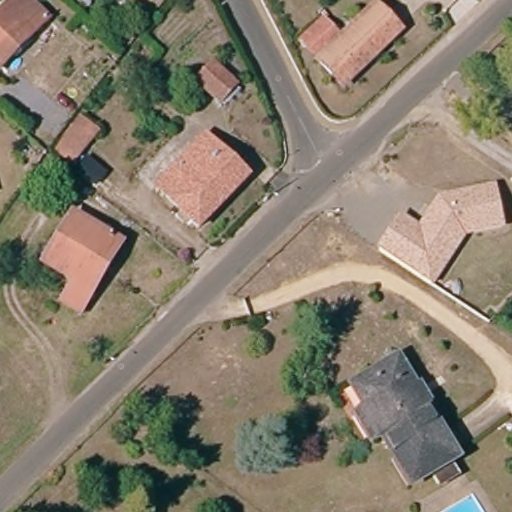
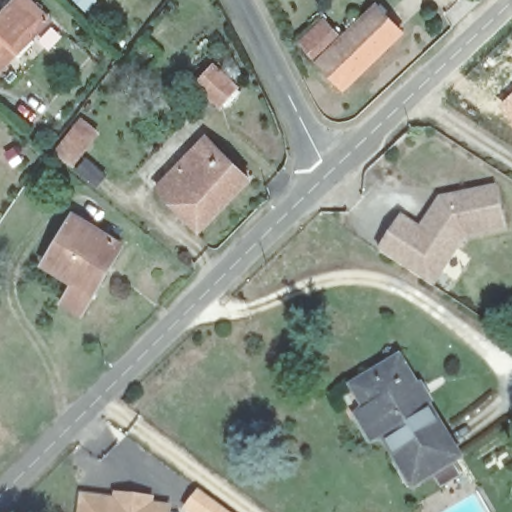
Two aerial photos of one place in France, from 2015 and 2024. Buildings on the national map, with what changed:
unchanged [(47,21),(0,64),(0,11),(12,0),(27,0),(47,21)]
unchanged [(394,35),(341,91),(312,64),(365,7),(394,35)]
unchanged [(232,86),(218,103),(193,82),(208,65),(232,86)]
new [(512,118),(498,103),(512,90),(512,118)]
unchanged [(98,131),(71,165),(49,152),(77,116),(98,131)]
unchanged [(242,180),(195,231),(153,191),(200,140),(242,180)]
unchanged [(507,229),(466,237),(435,286),(378,250),(400,215),(419,225),(438,196),(496,183),(507,229)]
unchanged [(120,240),(71,317),(55,307),(70,284),(40,265),(73,211),(120,240)]
unchanged [(409,496),(377,445),(368,450),(353,425),(364,419),(349,395),(369,381),(374,389),(397,375),(411,396),(405,400),(417,421),(424,416),(439,441),(431,446),(446,472),(409,496)]
new [(114,491),(154,495),(153,503),(172,505),(171,512),(78,512),(80,493),(113,498),(114,491)]
new [(224,512),(187,512),(184,510),(197,491),(224,512)]

